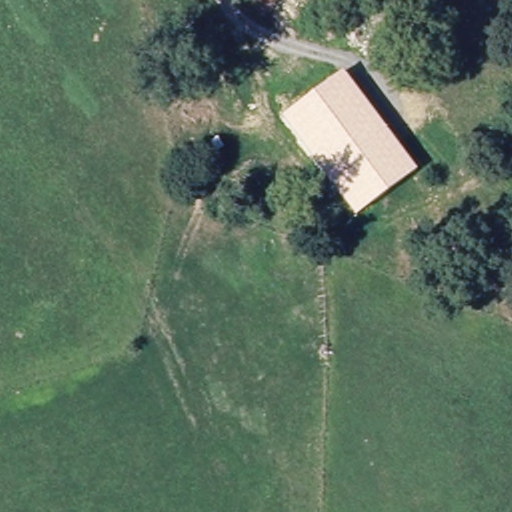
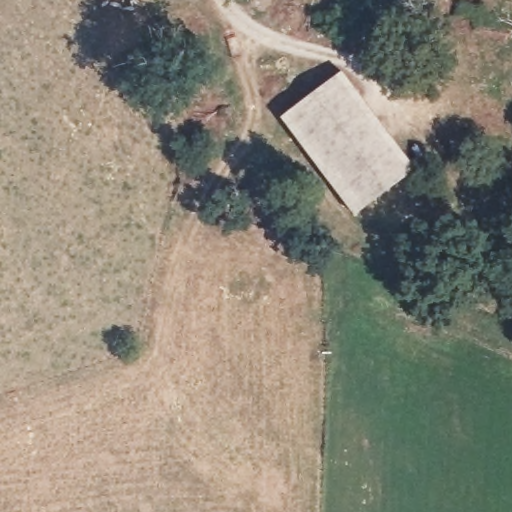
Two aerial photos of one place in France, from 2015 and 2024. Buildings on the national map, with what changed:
unchanged [(342,71),(416,170),(353,216),(281,117),(342,71)]

